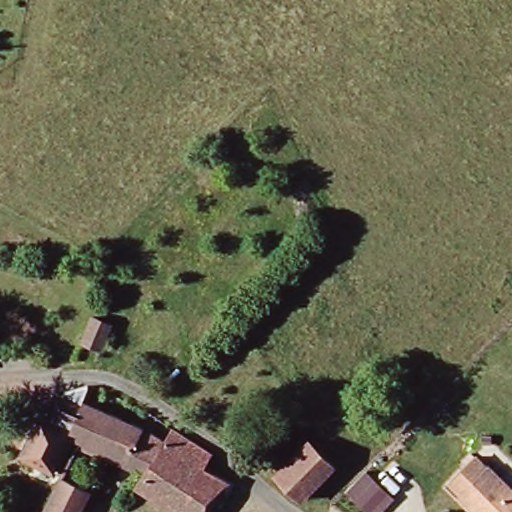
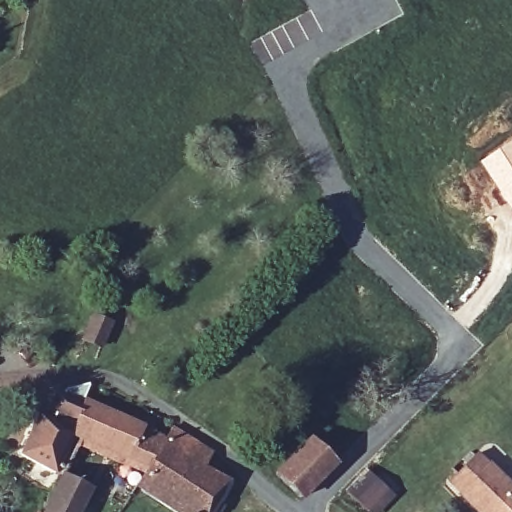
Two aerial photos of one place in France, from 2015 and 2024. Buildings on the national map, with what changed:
new [(512,139),(512,199),(485,158),(512,139)]
unchanged [(88,355),(99,334),(116,340),(108,364),(88,355)]
unchanged [(78,435),(63,427),(76,407),(85,412),(88,405),(148,429),(139,443),(168,460),(150,488),(123,470),(126,463),(108,453),(78,435)]
unchanged [(25,453),(49,417),(63,427),(78,435),(58,474),(25,453)]
unchanged [(108,453),(91,495),(63,479),(58,474),(78,435),(108,453)]
unchanged [(320,437),(347,464),(313,498),(286,471),(320,437)]
unchanged [(213,470),(206,483),(233,502),(225,512),(185,512),(150,488),(168,460),(177,447),(213,470)]
unchanged [(486,512),(474,502),(457,483),(485,456),(512,483),(512,512),(486,512)]
unchanged [(367,467),(396,493),(379,512),(367,512),(345,491),(367,467)]
unchanged [(91,495),(85,512),(50,512),(63,479),(91,495)]

